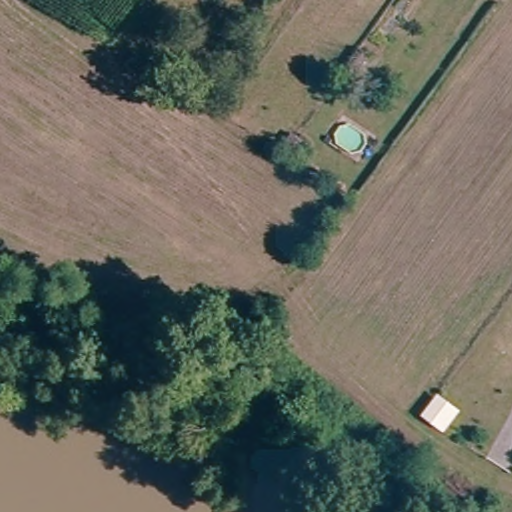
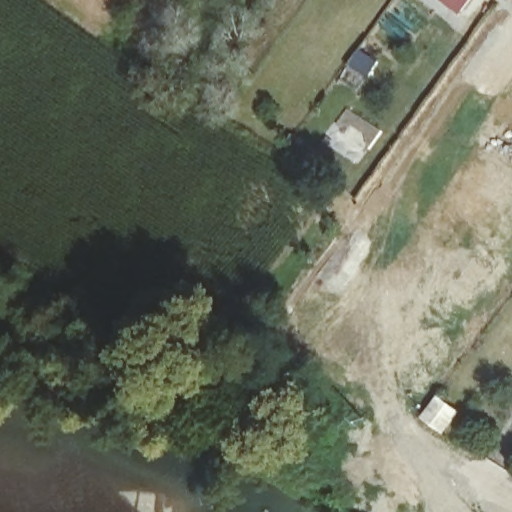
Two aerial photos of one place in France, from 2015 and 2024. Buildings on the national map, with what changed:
new [(461,13),(444,0),(471,0),(461,13)]
unchanged [(437,402),(457,417),(445,433),(425,418),(437,402)]

